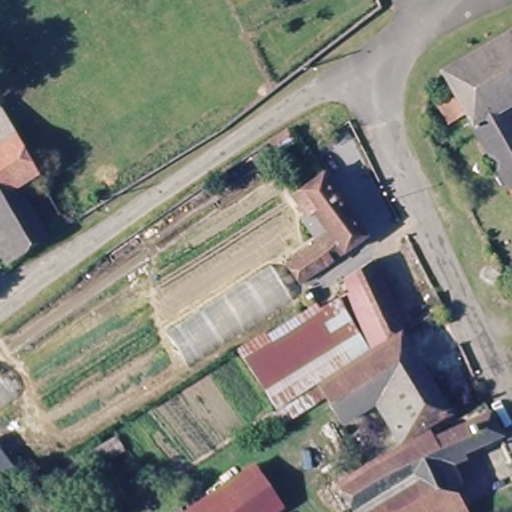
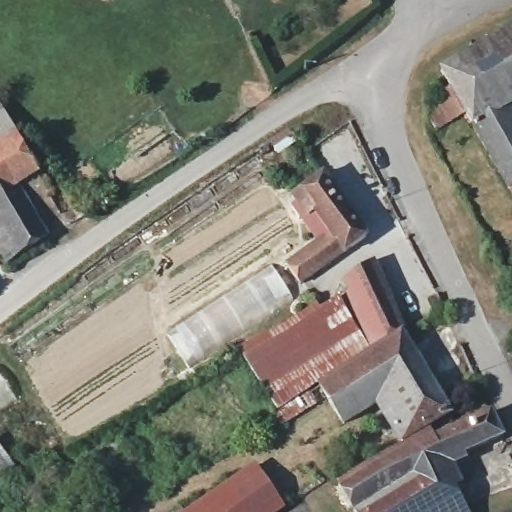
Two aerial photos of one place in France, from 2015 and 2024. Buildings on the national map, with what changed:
unchanged [(473,127),(446,80),(442,71),(512,32),(512,103),(507,106),(473,127)]
unchanged [(21,261),(0,228),(0,104),(0,103),(0,104),(69,228),(21,261)]
unchanged [(512,114),(512,191),(511,192),(473,127),(507,106),(512,114)]
unchanged [(324,235),(307,212),(292,192),(324,170),(370,233),(304,283),(291,266),(324,235)]
unchanged [(337,296),(350,286),(345,274),(371,255),(400,326),(362,349),(337,296)]
unchanged [(290,300),(187,365),(166,331),(270,266),(290,300)]
unchanged [(335,337),(317,308),(337,296),(362,349),(400,326),(400,332),(280,408),(265,385),(335,337)]
unchanged [(317,308),(335,337),(265,385),(243,350),(313,302),(317,308)]
unchanged [(280,408),(400,332),(447,414),(400,443),(376,403),(340,424),(321,394),(278,421),(271,413),(280,408)]
unchanged [(0,381),(15,406),(0,417),(0,381)]
unchanged [(342,487),(428,433),(432,438),(486,407),(500,432),(440,460),(450,485),(418,504),(423,512),(356,512),(342,487)]
unchanged [(132,445),(103,462),(92,446),(120,427),(132,445)]
unchanged [(21,469),(0,484),(0,443),(1,442),(21,469)]
unchanged [(250,474),(277,512),(191,512),(250,474)]
unchanged [(466,512),(423,512),(418,504),(450,485),(460,500),(466,512)]

